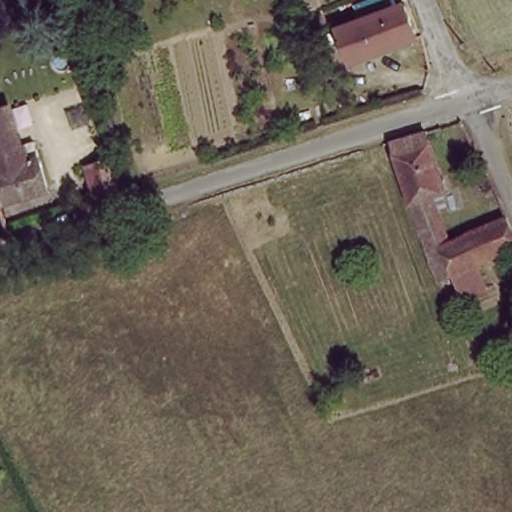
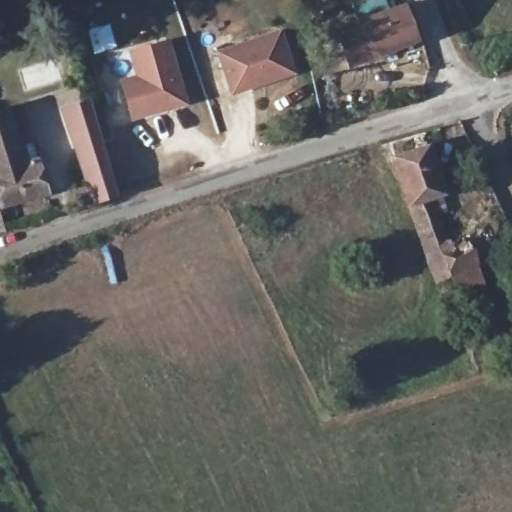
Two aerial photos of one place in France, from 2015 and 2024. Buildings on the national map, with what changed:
unchanged [(414,32),(359,60),(345,32),(366,22),(358,7),(375,0),(389,0),(394,10),(402,6),(414,32)]
new [(281,27),(296,74),(231,96),(216,51),(281,27)]
new [(188,101),(136,116),(119,55),(171,41),(188,101)]
new [(91,207),(59,108),(89,98),(120,198),(114,200),(98,205),(91,207)]
unchanged [(0,108),(9,138),(0,141),(0,108)]
unchanged [(432,189),(419,194),(433,236),(498,214),(512,240),(512,245),(471,260),(479,285),(449,294),(443,274),(428,279),(384,135),(413,126),(432,189)]
unchanged [(33,131),(48,182),(0,196),(0,194),(0,141),(9,138),(33,131)]
demolished [(114,200),(98,205),(85,166),(103,160),(114,200)]

